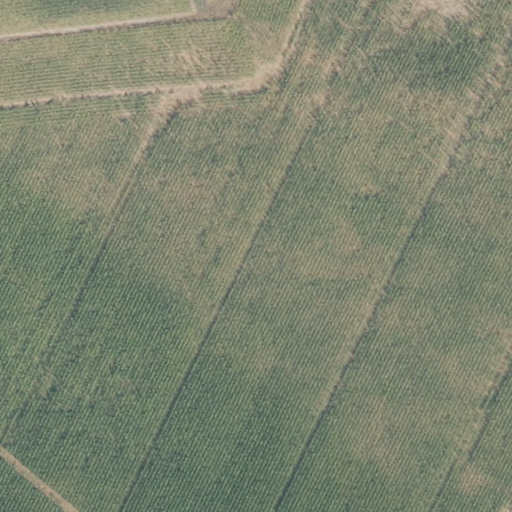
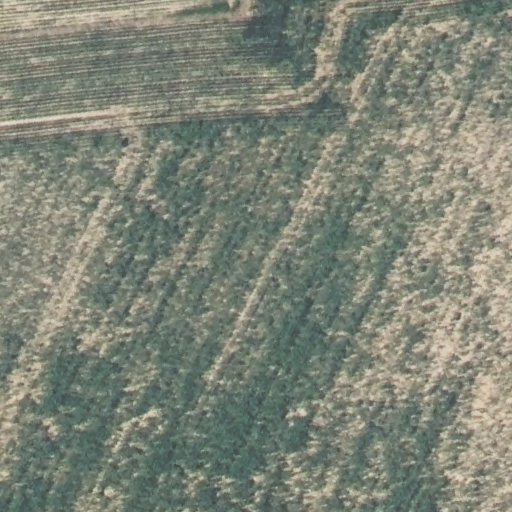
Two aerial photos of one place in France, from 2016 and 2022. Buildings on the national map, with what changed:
[]

